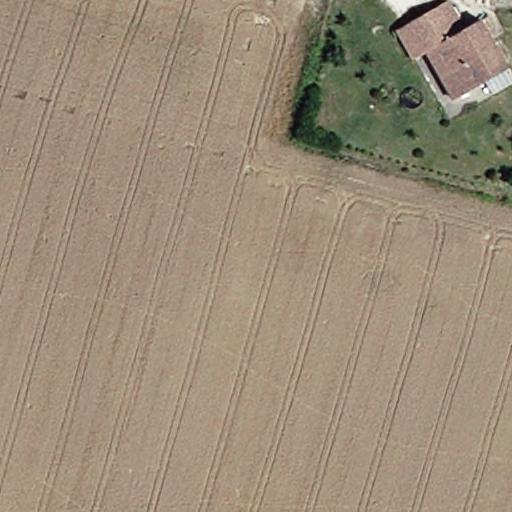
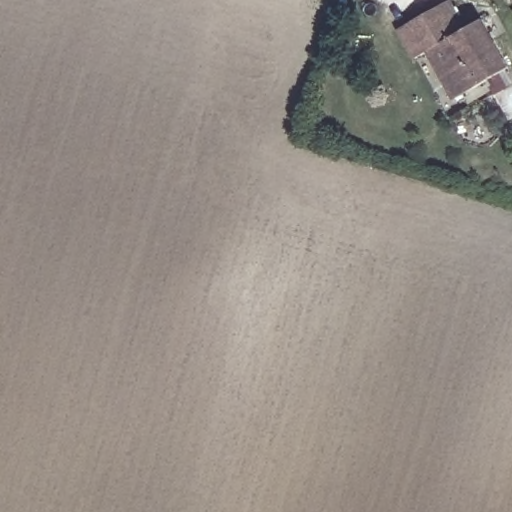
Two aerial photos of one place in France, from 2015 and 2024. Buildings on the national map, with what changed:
unchanged [(448,77),(437,82),(408,27),(454,3),(471,33),(491,23),(512,66),(512,68),(458,96),(448,77)]

